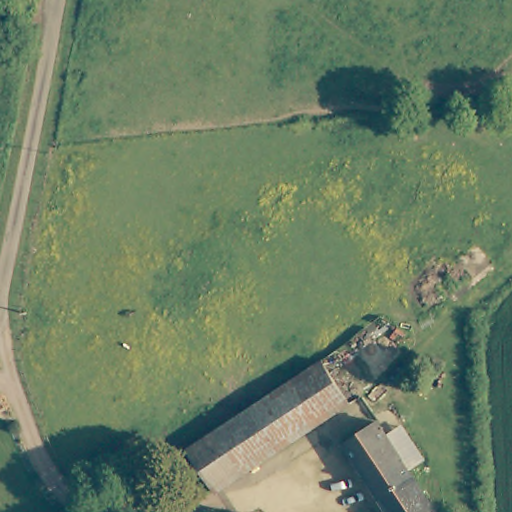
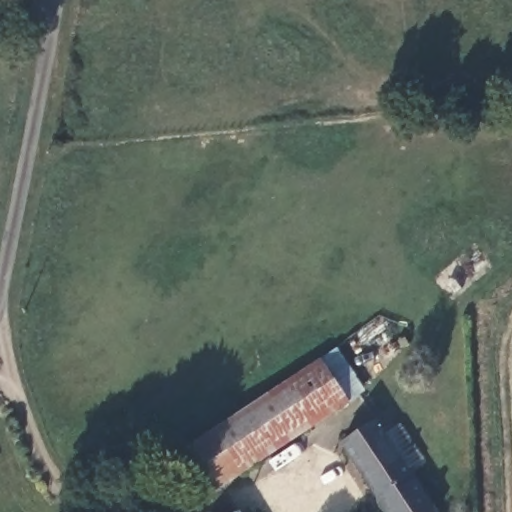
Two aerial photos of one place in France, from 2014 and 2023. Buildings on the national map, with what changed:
unchanged [(210,492),(202,481),(182,445),(318,361),(334,386),(343,379),(351,391),(341,398),(345,404),(210,492)]
unchanged [(362,431),(371,425),(429,512),(379,512),(336,447),(362,431)]

